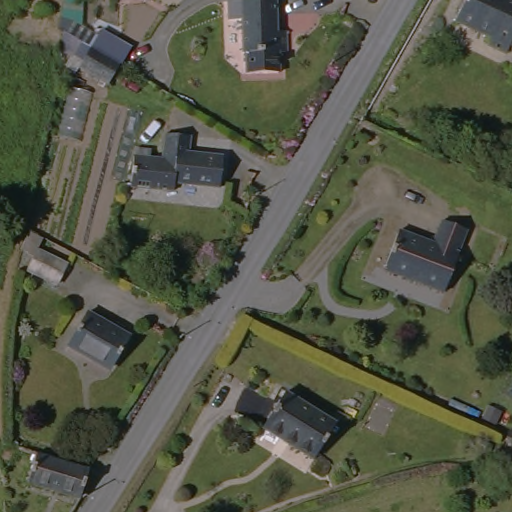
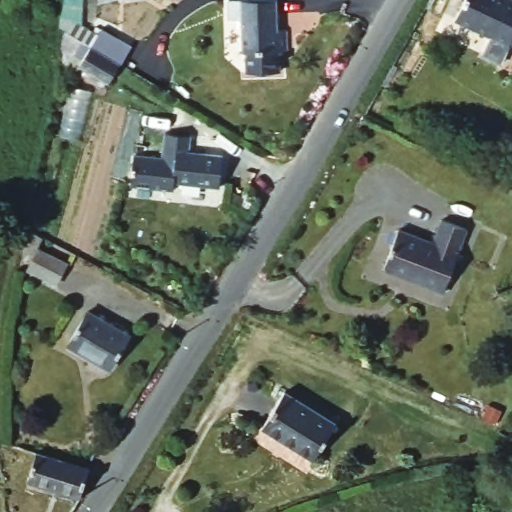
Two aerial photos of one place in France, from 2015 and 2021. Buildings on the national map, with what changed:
unchanged [(289,22),(290,41),(281,41),(282,62),(251,65),(250,44),(246,44),(245,13),(232,11),(231,0),(280,0),(280,21),(289,22)]
unchanged [(512,45),(507,56),(491,50),(494,41),(455,25),(466,0),(511,0),(512,1),(512,45)]
unchanged [(78,68),(88,48),(99,30),(129,45),(119,63),(108,83),(78,68)]
unchanged [(161,159),(162,133),(191,135),(190,155),(224,158),(223,186),(170,183),(170,190),(127,186),(128,158),(161,159)]
unchanged [(435,246),(443,225),(467,235),(443,296),(385,271),(401,232),(435,246)]
unchanged [(72,261),(63,279),(58,276),(34,263),(44,245),(72,261)]
unchanged [(124,336),(108,368),(71,350),(87,317),(124,336)]
unchanged [(266,428),(283,391),(336,417),(317,454),(266,428)]
unchanged [(27,482),(37,446),(94,459),(83,497),(27,482)]

